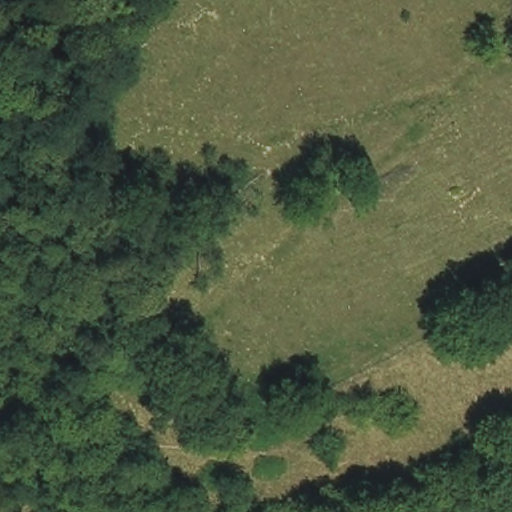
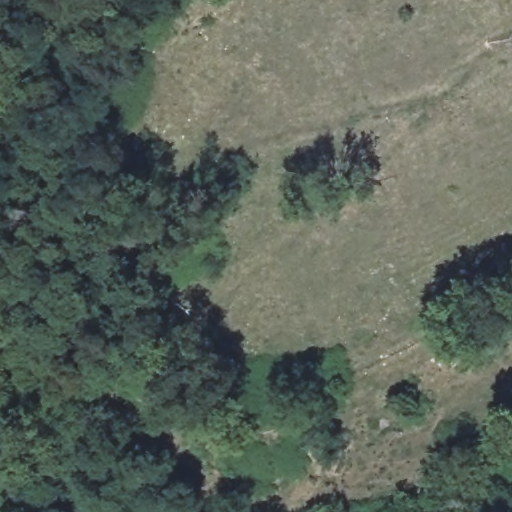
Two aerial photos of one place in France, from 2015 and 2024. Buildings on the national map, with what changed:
[]

